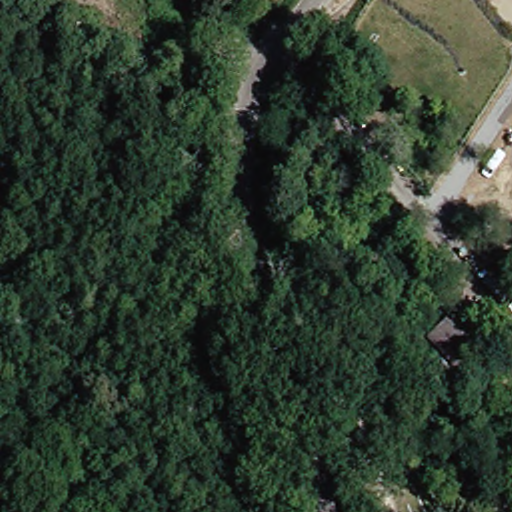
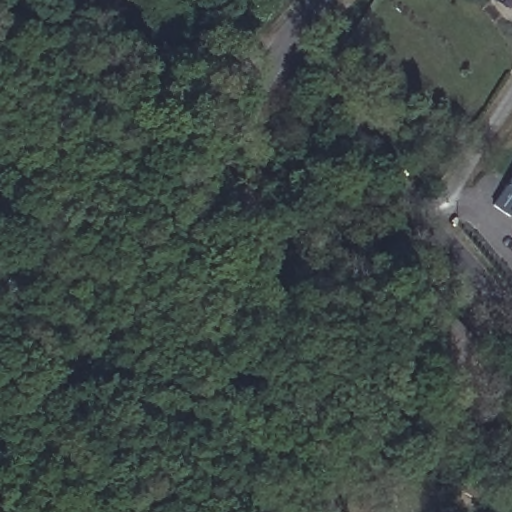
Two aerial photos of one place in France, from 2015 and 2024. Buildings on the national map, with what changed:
new [(498,202),(512,181),(512,211),(498,202)]
unchanged [(478,349),(459,367),(430,337),(449,318),(478,349)]
unchanged [(455,487),(457,482),(465,471),(481,482),(475,493),(471,497),(455,487)]

